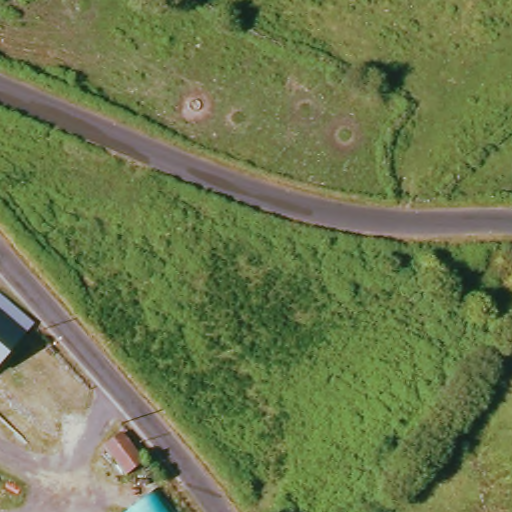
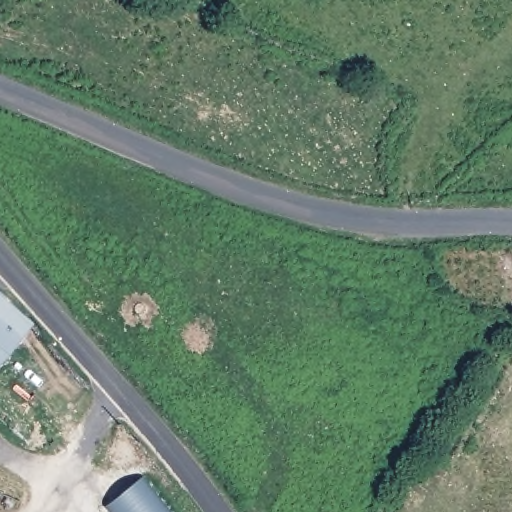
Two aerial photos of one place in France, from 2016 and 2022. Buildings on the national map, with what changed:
unchanged [(1,297),(33,330),(24,341),(0,372),(0,298),(1,297)]
unchanged [(127,476),(105,449),(122,435),(145,465),(127,476)]
unchanged [(157,490),(174,512),(129,512),(157,490)]

